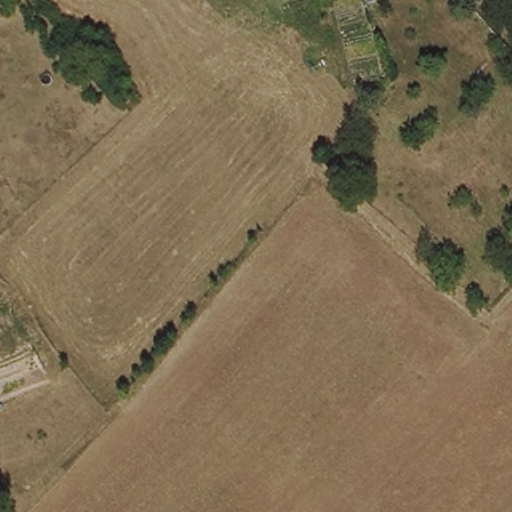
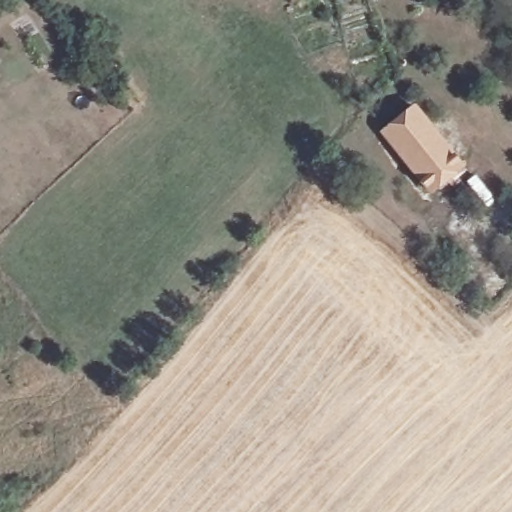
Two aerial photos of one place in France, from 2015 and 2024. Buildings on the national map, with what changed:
demolished [(404,0),(432,0),(440,15),(413,27),(398,2),(404,0)]
new [(433,195),(382,132),(415,106),(466,167),(433,195)]

